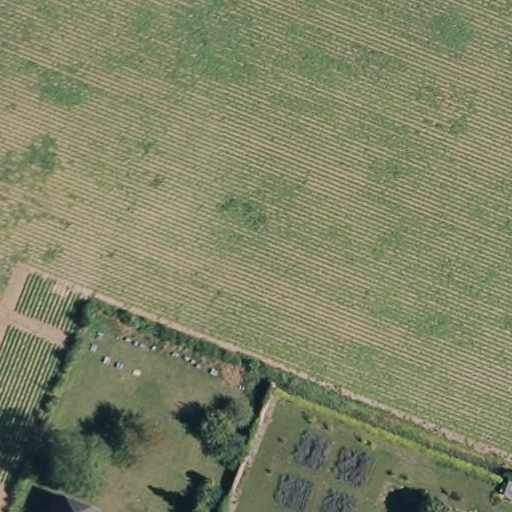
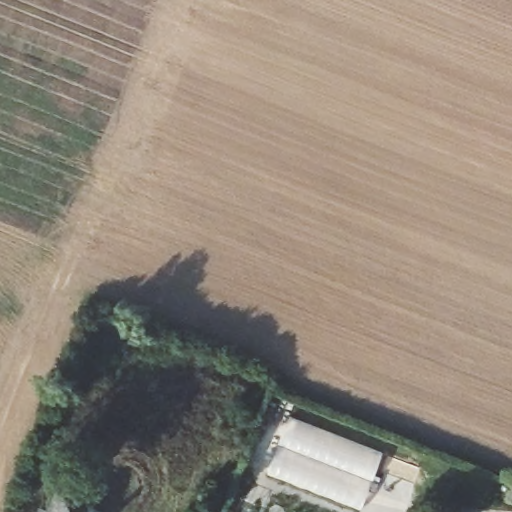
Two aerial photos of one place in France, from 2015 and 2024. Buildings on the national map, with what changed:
new [(359,512),(267,475),(290,418),(382,453),(359,512)]
unchanged [(512,476),(512,497),(505,494),(511,476),(512,476)]
unchanged [(58,498),(79,507),(77,512),(52,512),(58,498)]
unchanged [(93,512),(77,512),(79,507),(93,512)]

